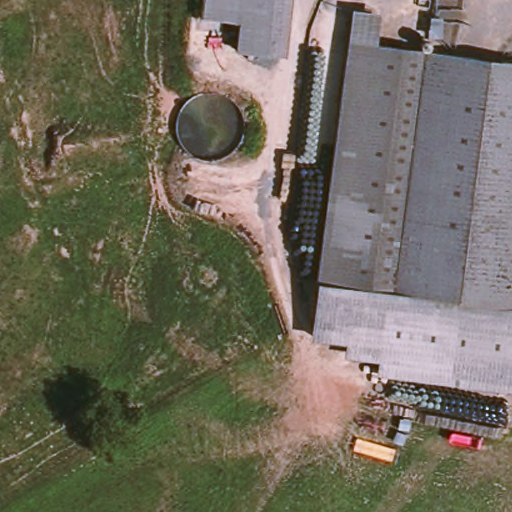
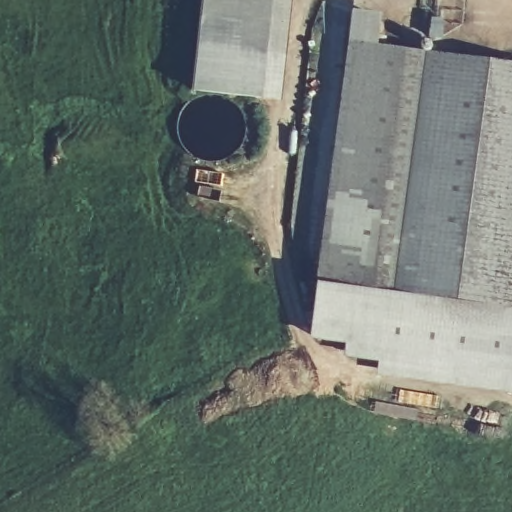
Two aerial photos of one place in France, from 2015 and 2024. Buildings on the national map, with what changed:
unchanged [(290,56),(238,50),(241,20),(203,16),(205,0),(296,0),(290,56)]
unchanged [(360,12),(379,13),(376,45),(512,63),(512,308),(333,285),(328,284),(326,284),(337,174),(357,43),(360,12)]
new [(281,100),(195,92),(203,16),(241,20),(238,50),(287,55),(281,100)]
unchanged [(333,285),(512,308),(512,356),(485,389),(422,381),(390,353),(330,303),(333,285)]
unchanged [(390,377),(392,365),(354,360),(355,346),(325,342),(330,303),(390,353),(422,381),(390,377)]
unchanged [(512,356),(512,393),(485,389),(512,356)]

